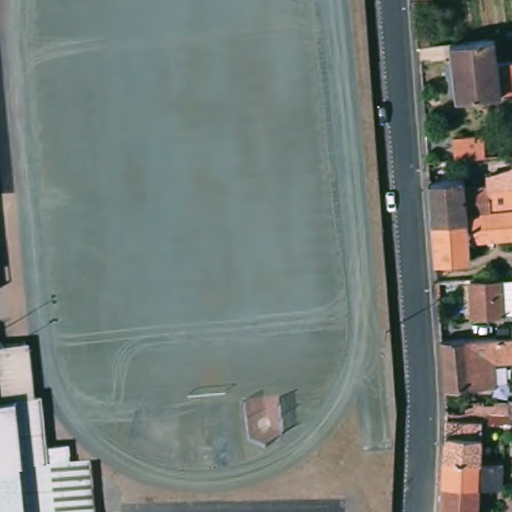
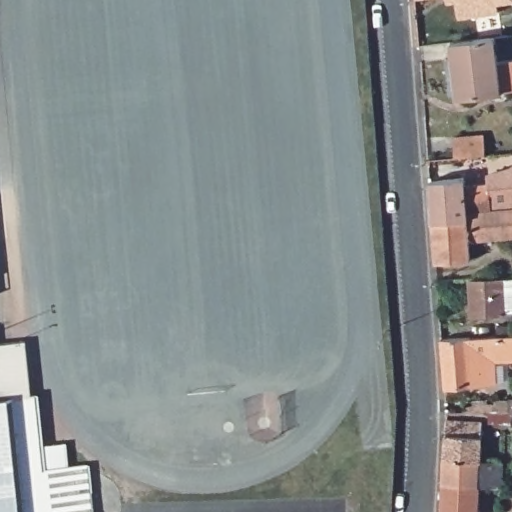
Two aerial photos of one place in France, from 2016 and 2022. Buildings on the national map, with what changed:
unchanged [(512,63),(512,93),(454,99),(447,44),(492,39),(496,64),(512,63)]
unchanged [(456,142),(487,140),(488,158),(457,161),(456,142)]
unchanged [(468,221),(467,214),(465,181),(491,180),(502,179),(501,171),(512,170),(512,235),(470,237),(468,221)]
unchanged [(438,222),(434,222),(431,184),(465,181),(467,214),(468,221),(438,222)]
unchanged [(438,222),(468,221),(470,237),(471,261),(437,263),(434,222),(438,222)]
unchanged [(504,314),(469,316),(467,280),(496,279),(502,279),(504,314)]
unchanged [(493,384),(472,386),(472,389),(447,389),(443,342),(452,342),(511,339),(512,339),(512,362),(492,364),(493,384)]
unchanged [(2,397),(0,397),(0,375),(2,397)]
unchanged [(2,397),(36,393),(42,447),(64,445),(66,464),(88,461),(93,512),(0,512),(0,397),(2,397)]
unchanged [(500,441),(483,441),(483,429),(500,429),(500,441)]
unchanged [(477,439),(475,479),(441,478),(443,438),(477,439)]
unchanged [(440,501),(441,478),(475,479),(498,480),(497,505),(473,503),(440,501)]
unchanged [(440,501),(473,503),(473,512),(439,512),(440,501)]

